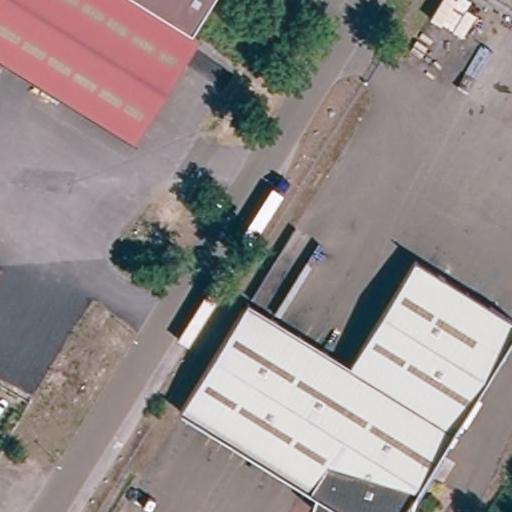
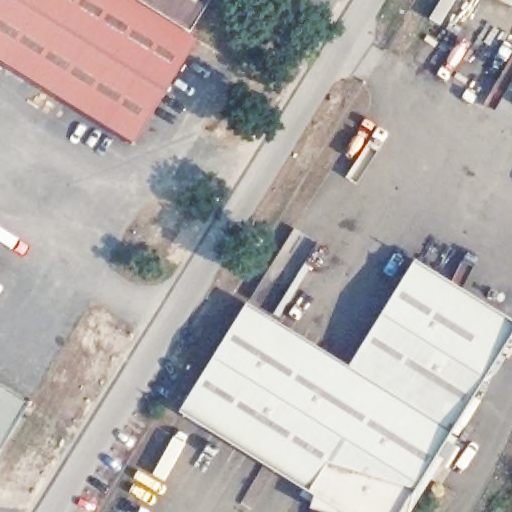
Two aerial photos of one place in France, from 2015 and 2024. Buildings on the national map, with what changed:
unchanged [(0,0),(141,0),(195,32),(202,36),(139,139),(0,57),(0,0)]
unchanged [(141,0),(215,0),(195,32),(141,0)]
unchanged [(350,372),(417,260),(512,319),(512,335),(420,487),(413,512),(310,512),(313,501),(176,418),(244,307),(350,372)]
unchanged [(0,269),(0,263),(2,265),(0,269)]
new [(0,447),(0,387),(26,403),(0,447)]

